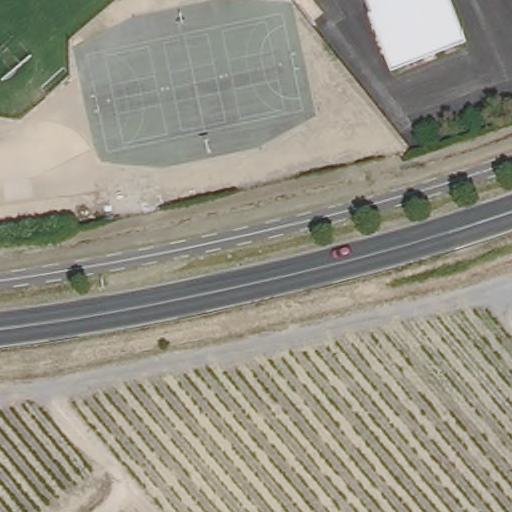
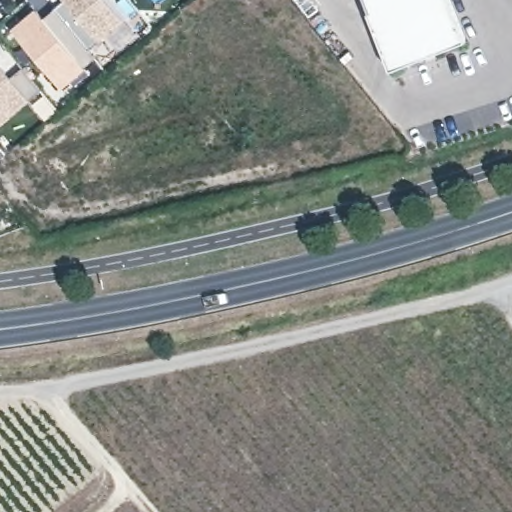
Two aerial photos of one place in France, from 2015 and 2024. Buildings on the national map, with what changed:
new [(80,15),(67,0),(111,0),(127,18),(90,50),(69,24),(80,15)]
unchanged [(467,41),(391,71),(369,13),(370,13),(365,0),(450,0),(467,41)]
new [(96,57),(61,87),(13,30),(36,10),(43,18),(55,9),(96,57)]
new [(25,69),(43,91),(0,126),(0,65),(13,79),(25,69)]

